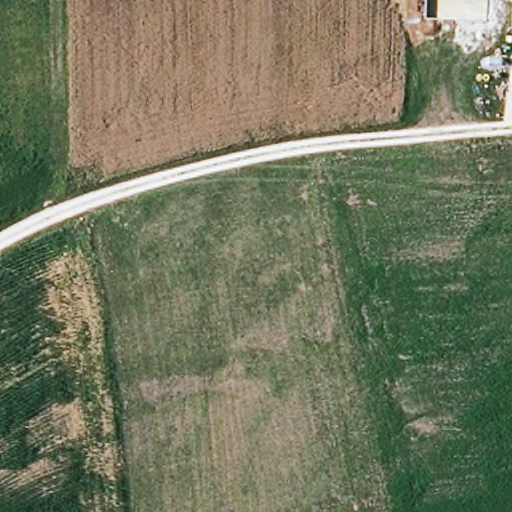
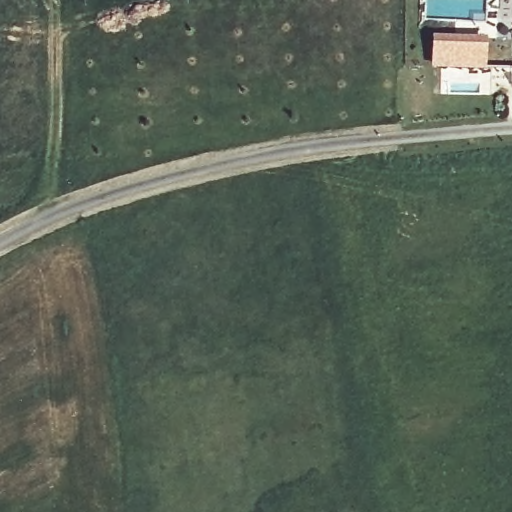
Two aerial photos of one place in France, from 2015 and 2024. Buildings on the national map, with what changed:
new [(431,35),(487,35),(485,67),(430,66),(431,35)]

